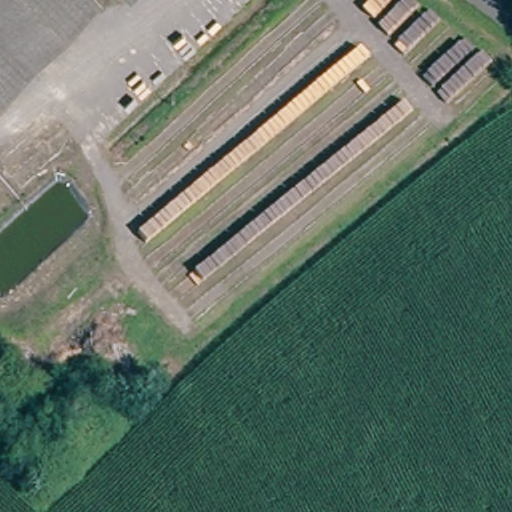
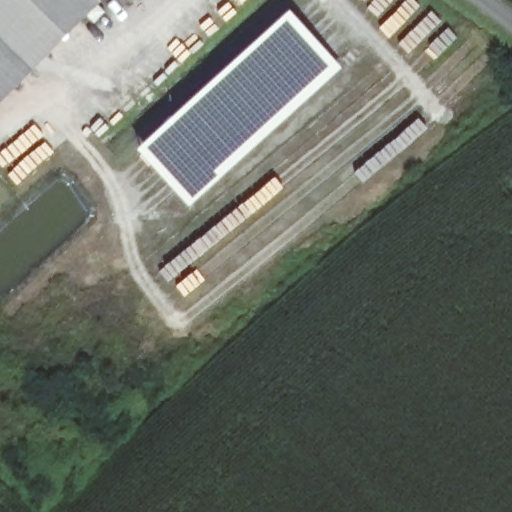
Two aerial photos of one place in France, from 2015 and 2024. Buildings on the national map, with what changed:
unchanged [(96,0),(0,102),(0,0),(96,0)]
new [(290,10),(342,68),(190,206),(137,149),(290,10)]

